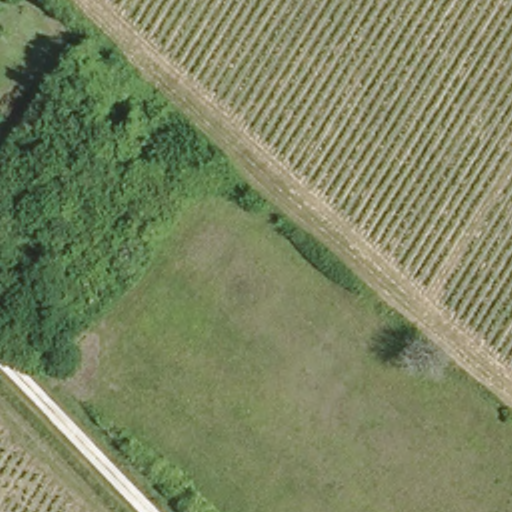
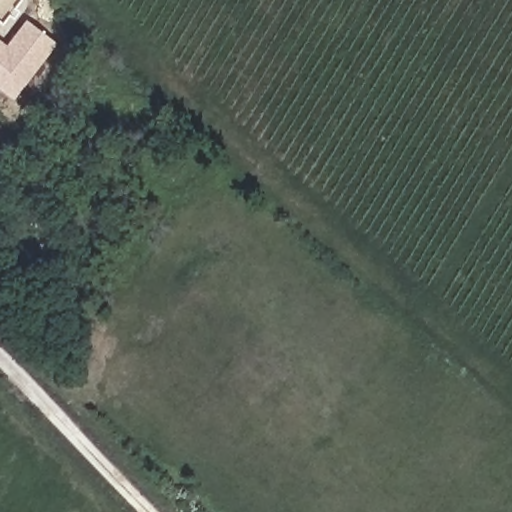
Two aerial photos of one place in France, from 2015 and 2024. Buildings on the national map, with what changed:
new [(25,19),(57,44),(15,97),(0,86),(0,41),(6,45),(25,19)]

